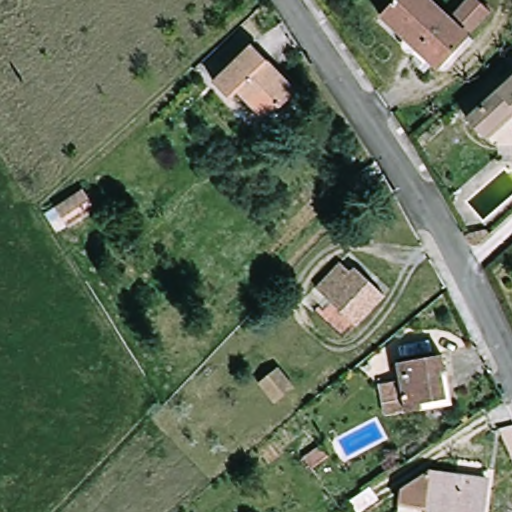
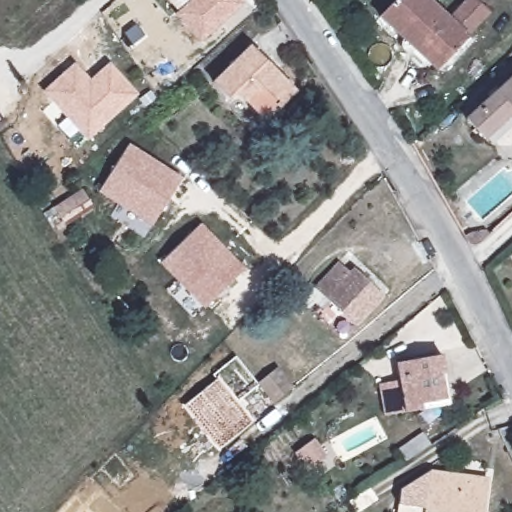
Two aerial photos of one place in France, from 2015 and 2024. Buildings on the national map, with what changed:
new [(201,42),(177,15),(191,1),(190,0),(238,0),(243,6),(201,42)]
unchanged [(386,16),(401,0),(435,0),(453,16),(468,0),(480,0),(494,13),(455,54),(442,69),(434,61),(386,16)]
unchanged [(270,120),(263,111),(237,86),(229,94),(213,78),(251,41),(296,86),(278,103),(283,107),(270,120)]
new [(86,140),(43,91),(75,61),(90,79),(110,62),(139,95),(86,140)]
unchanged [(487,138),(471,121),(505,91),(507,93),(512,88),(512,115),(487,138)]
new [(131,144),(184,180),(153,227),(99,189),(131,144)]
unchanged [(65,225),(55,209),(83,192),(93,207),(65,225)]
unchanged [(483,237),(478,239),(476,240),(474,241),(472,241),(470,240),(469,239),(467,237),(463,233),(469,228),(488,224),(492,228),(488,232),(486,234),(484,235),(483,237)]
new [(201,226),(244,275),(203,312),(159,264),(201,226)]
unchanged [(343,266),(354,276),(358,272),(389,299),(361,330),(319,293),(343,266)]
unchanged [(457,406),(426,411),(426,408),(390,414),(385,383),(404,379),(402,362),(445,355),(448,372),(452,371),(457,406)]
new [(183,406),(217,379),(213,375),(236,356),(259,385),(236,402),(253,422),(219,449),(183,406)]
unchanged [(297,386),(278,401),(263,383),(283,368),(297,386)]
unchanged [(327,456),(311,467),(303,456),(319,445),(327,456)]
unchanged [(409,489),(439,471),(496,479),(491,512),(406,512),(409,489)]
new [(75,498),(85,507),(101,492),(121,512),(61,512),(75,498)]

